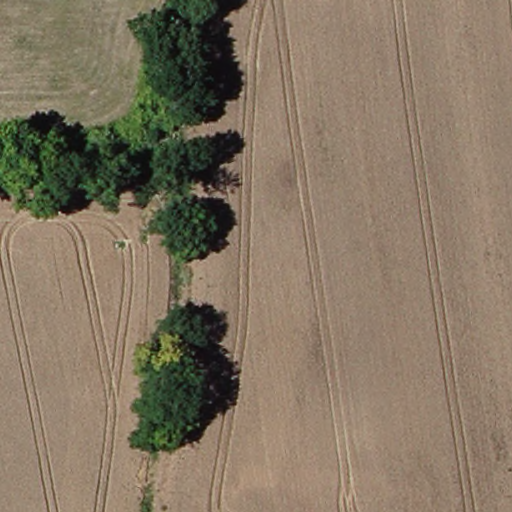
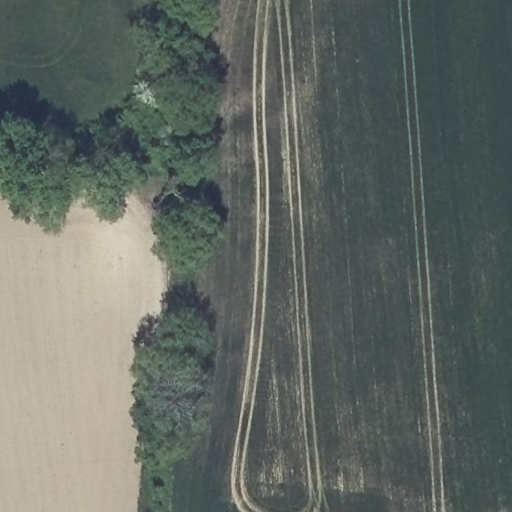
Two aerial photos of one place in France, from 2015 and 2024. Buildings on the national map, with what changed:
[]

